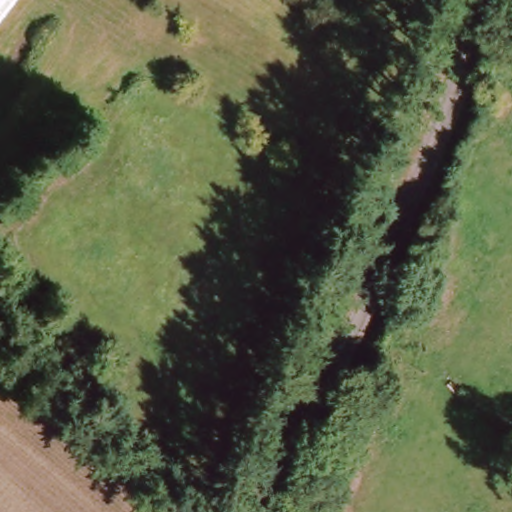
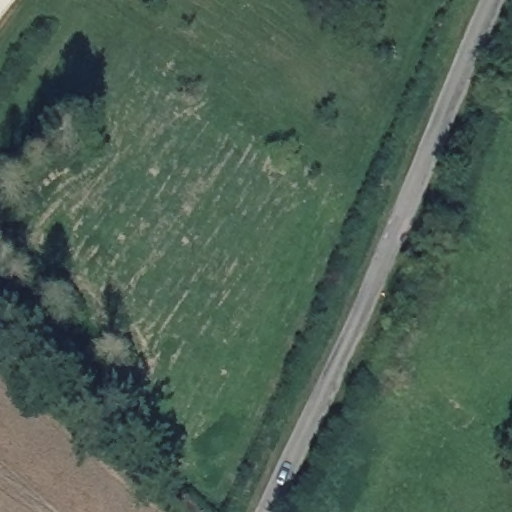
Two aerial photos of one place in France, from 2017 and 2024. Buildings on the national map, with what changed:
unchanged [(0,23),(0,0),(19,0),(0,23)]

